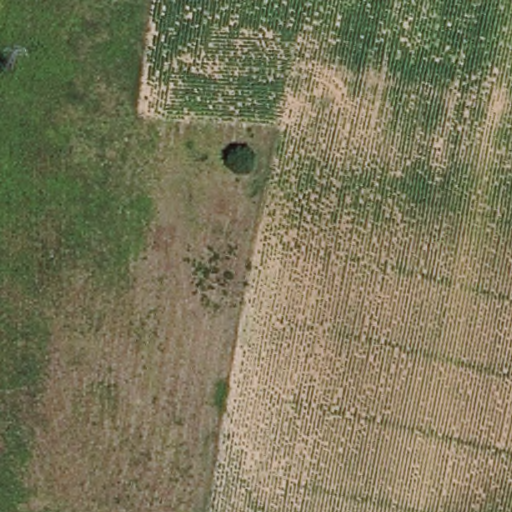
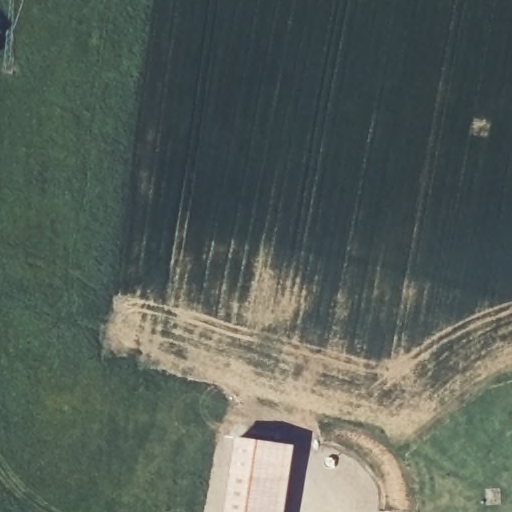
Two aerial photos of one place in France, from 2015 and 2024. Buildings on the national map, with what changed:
new [(239,437),(297,446),(287,512),(228,512),(239,437)]

